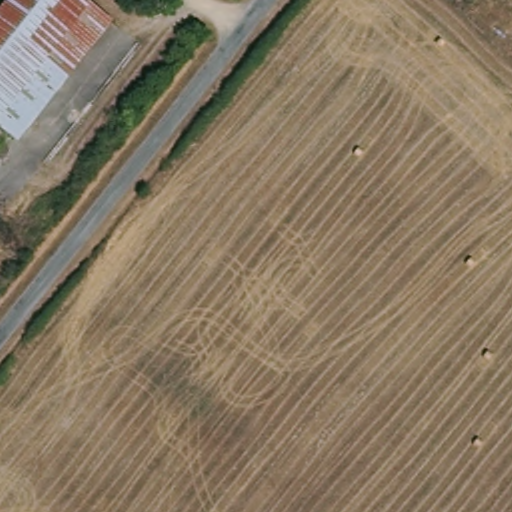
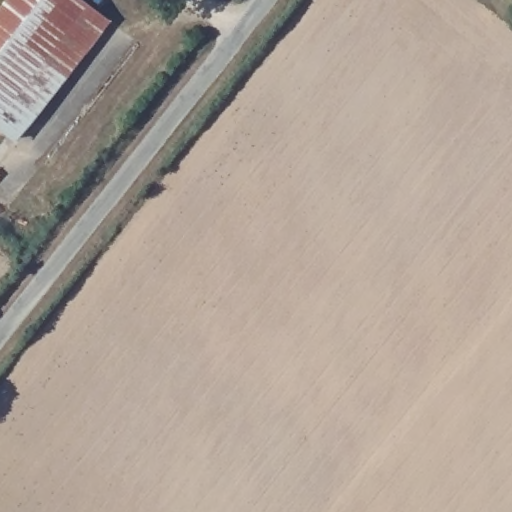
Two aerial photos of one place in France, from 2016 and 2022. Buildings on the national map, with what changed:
unchanged [(107,18),(15,137),(0,126),(0,14),(11,0),(84,0),(107,18)]

